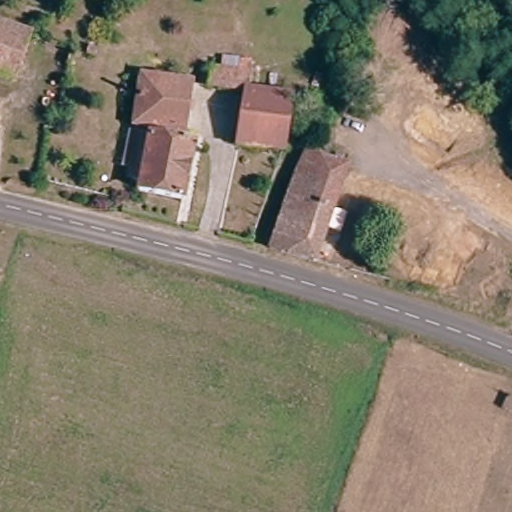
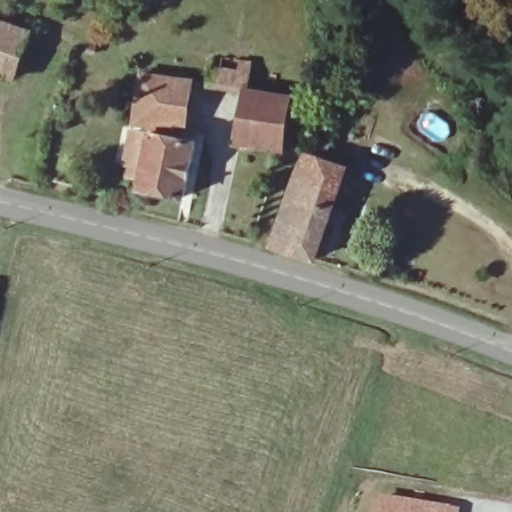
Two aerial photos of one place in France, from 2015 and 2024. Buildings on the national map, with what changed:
unchanged [(25,31),(4,78),(0,76),(0,21),(25,31)]
unchanged [(210,60),(246,69),(244,88),(206,81),(210,60)]
unchanged [(181,128),(129,123),(130,121),(138,72),(187,78),(186,82),(181,128)]
unchanged [(244,88),(285,96),(276,150),(236,141),(244,88)]
unchanged [(187,146),(172,197),(129,187),(133,166),(122,163),(128,142),(137,145),(141,132),(187,146)]
unchanged [(291,182),(316,139),(346,151),(338,176),(309,268),(266,256),(291,182)]
unchanged [(356,197),(365,182),(384,193),(378,209),(356,197)]
new [(382,497),(450,507),(460,509),(460,512),(379,512),(382,497)]

